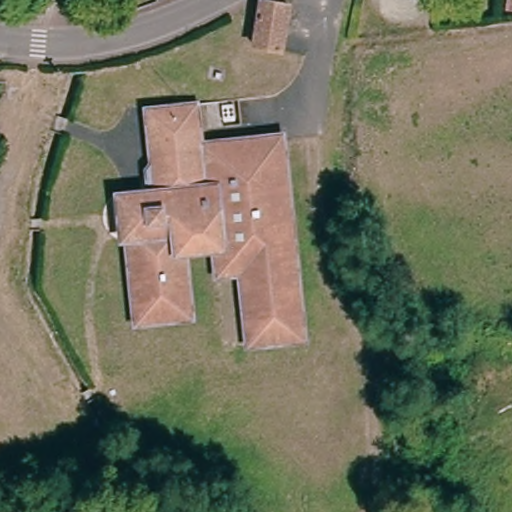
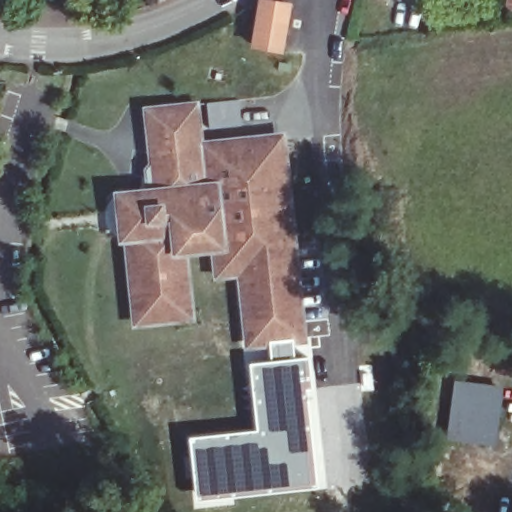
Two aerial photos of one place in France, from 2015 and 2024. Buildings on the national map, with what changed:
unchanged [(265,1),(289,6),(281,51),(253,45),(260,3),(261,0),(265,1)]
unchanged [(218,72),(216,82),(207,80),(209,70),(218,72)]
unchanged [(153,148),(156,140),(153,118),(190,113),(193,133),(200,133),(202,153),(277,142),(286,204),(301,320),(250,327),(242,267),(218,270),(215,245),(176,250),(184,314),(137,320),(127,237),(114,239),(110,200),(126,197),(141,195),(153,148)]
unchanged [(301,320),(304,340),(253,347),(250,327),(301,320)]
new [(293,342),(293,357),(308,356),(312,388),(306,389),(317,486),(196,500),(188,436),(256,429),(249,362),(271,359),(269,345),(293,342)]
new [(454,378),(505,385),(496,445),(445,438),(454,378)]

